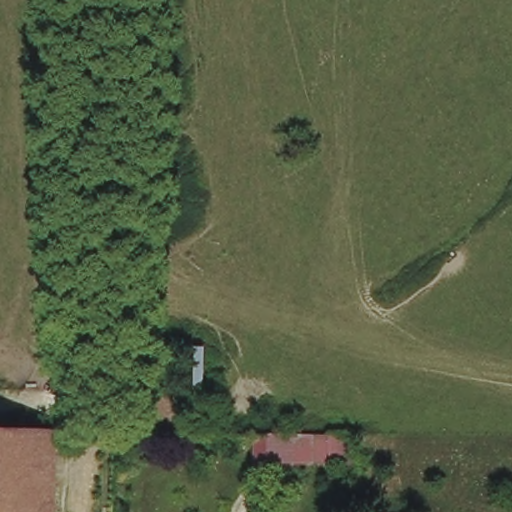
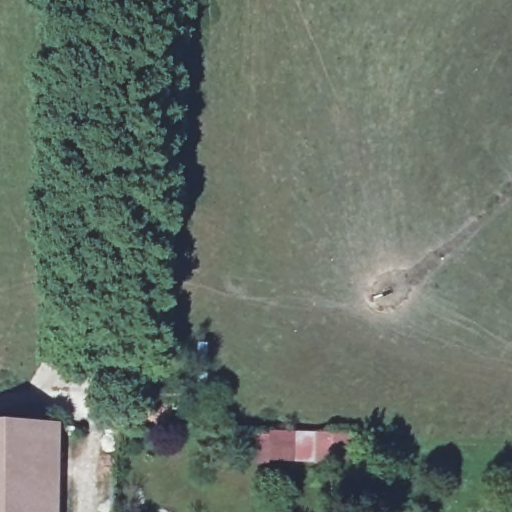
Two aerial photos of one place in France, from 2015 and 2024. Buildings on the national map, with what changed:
unchanged [(60,424),(59,512),(0,512),(0,422),(5,422),(60,424)]
unchanged [(305,427),(315,427),(340,429),(340,430),(340,457),(323,457),(305,457),(305,427)]

